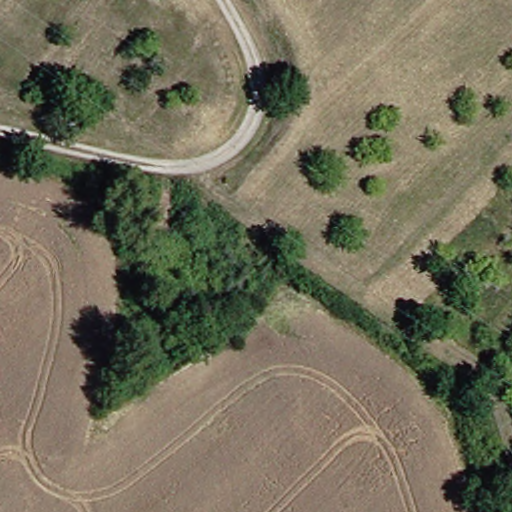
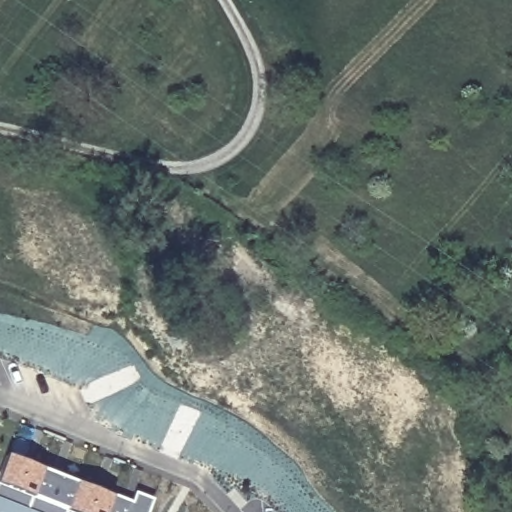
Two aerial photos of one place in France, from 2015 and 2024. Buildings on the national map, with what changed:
new [(0,478),(10,454),(114,495),(115,492),(134,500),(139,490),(156,497),(151,512),(1,512),(0,511),(0,478)]

